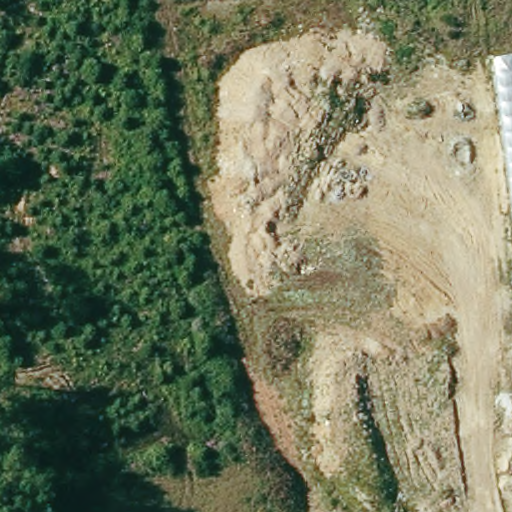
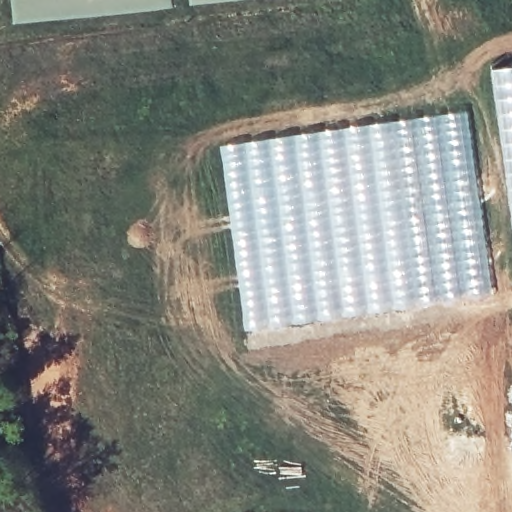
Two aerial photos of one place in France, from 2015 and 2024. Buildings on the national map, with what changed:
unchanged [(493,69),(512,66),(512,208),(493,69)]
new [(347,125),(467,110),(488,254),(492,292),(377,311),(243,330),(218,144),(347,125)]

